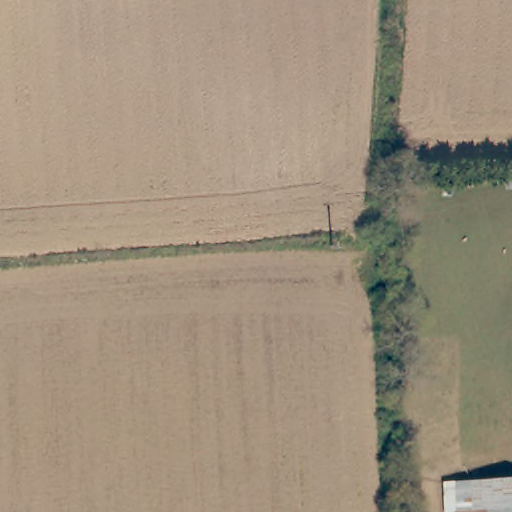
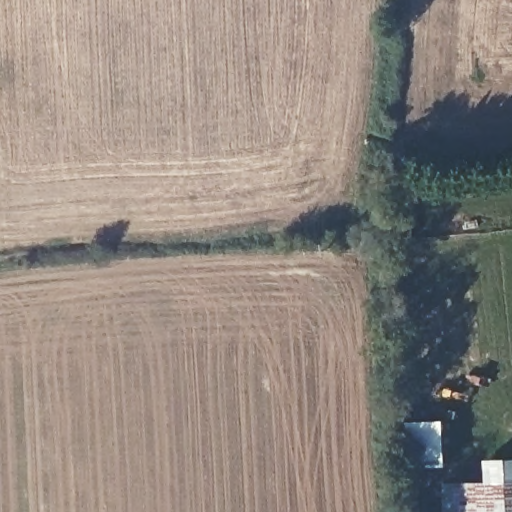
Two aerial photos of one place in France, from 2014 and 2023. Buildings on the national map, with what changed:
new [(409,467),(406,422),(445,420),(447,468),(409,467)]
unchanged [(443,486),(512,484),(512,512),(445,512),(443,486)]

